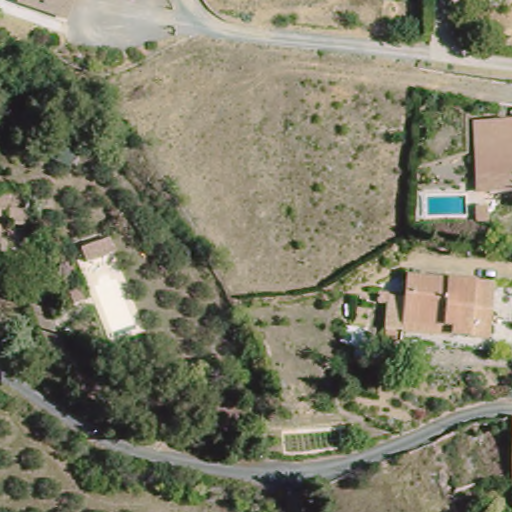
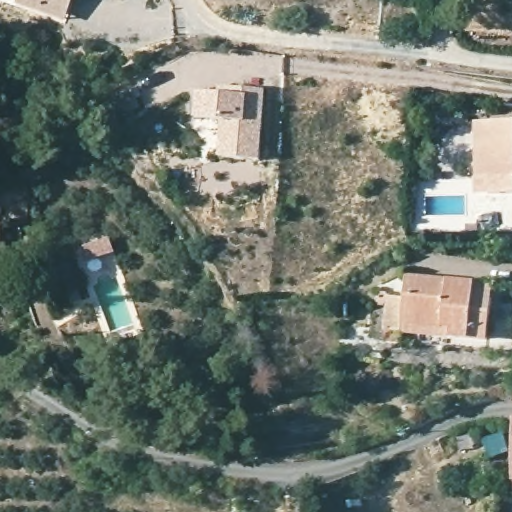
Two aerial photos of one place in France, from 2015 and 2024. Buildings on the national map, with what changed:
unchanged [(47,4),(40,2),(37,9),(14,2),(15,0),(55,0),(47,4)]
new [(193,119),(195,91),(220,91),(246,91),(264,92),(261,159),(215,157),(217,121),(193,119)]
unchanged [(512,117),(512,198),(470,199),(470,120),(512,117)]
unchanged [(386,335),(388,300),(401,301),(402,280),(490,286),(485,342),(445,339),(399,335),(386,335)]
unchanged [(509,476),(508,418),(512,418),(512,481),(510,481),(509,476)]

